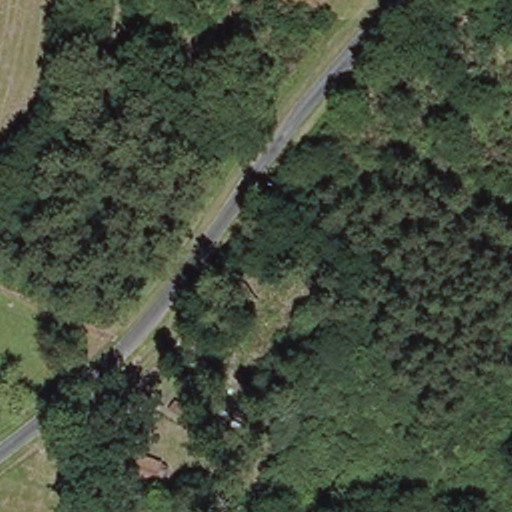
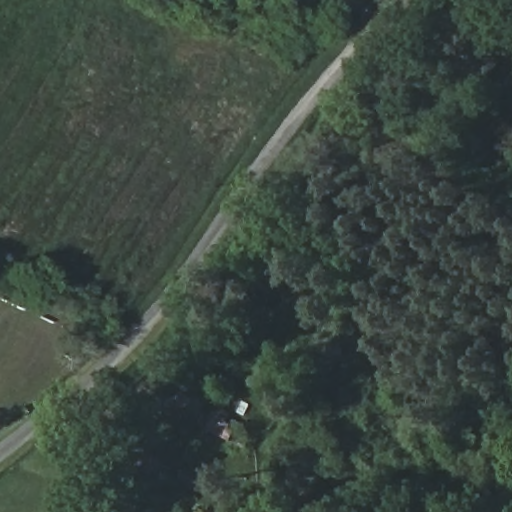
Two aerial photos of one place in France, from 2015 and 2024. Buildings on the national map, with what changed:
unchanged [(143,455),(154,439),(177,452),(167,469),(143,455)]

